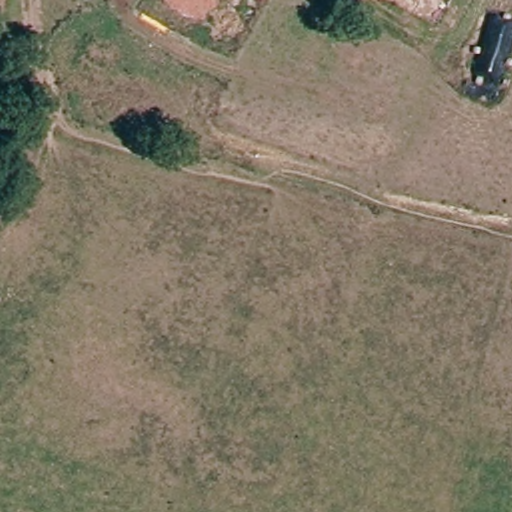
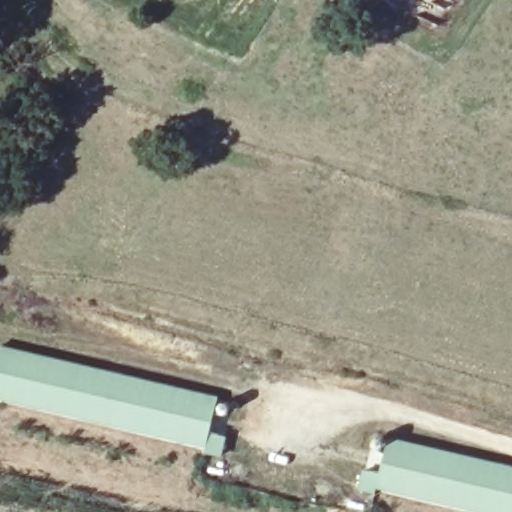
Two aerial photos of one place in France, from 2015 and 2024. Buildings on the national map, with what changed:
new [(210,433),(224,437),(220,456),(205,452),(207,444),(0,395),(0,348),(218,399),(210,433)]
new [(381,473),(389,439),(512,467),(512,512),(493,512),(378,486),(376,493),(362,490),(366,470),(381,473)]

